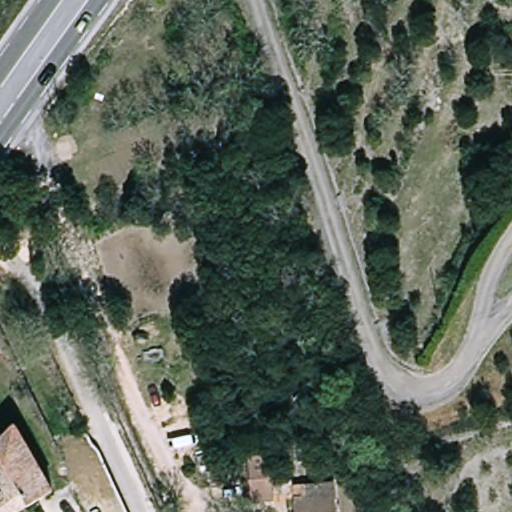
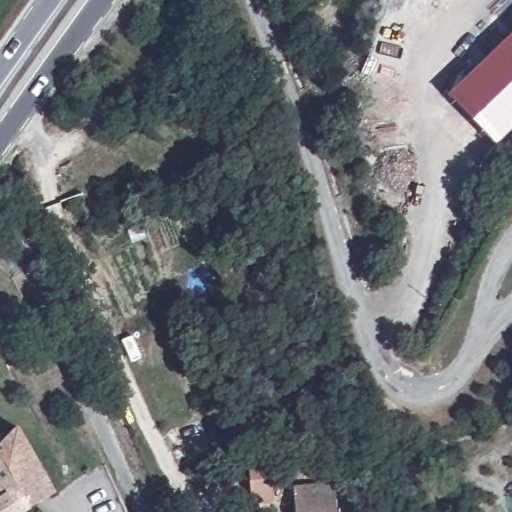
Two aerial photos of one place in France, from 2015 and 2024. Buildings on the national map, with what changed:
new [(512,33),(512,129),(499,141),(451,92),(512,33)]
unchanged [(58,482),(12,512),(0,512),(0,445),(20,421),(58,482)]
unchanged [(271,461),(278,502),(255,506),(248,464),(271,461)]
unchanged [(338,476),(341,512),(296,512),(293,479),(338,476)]

